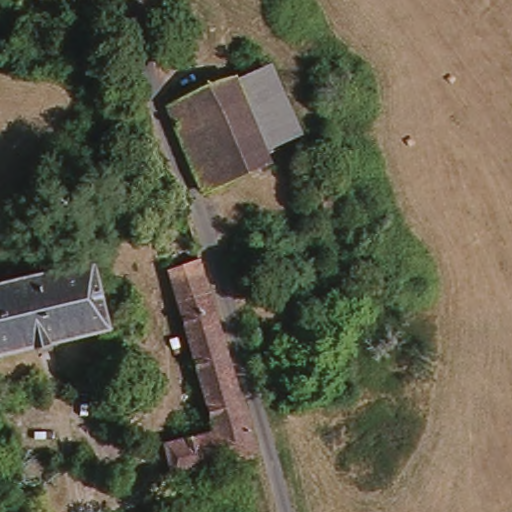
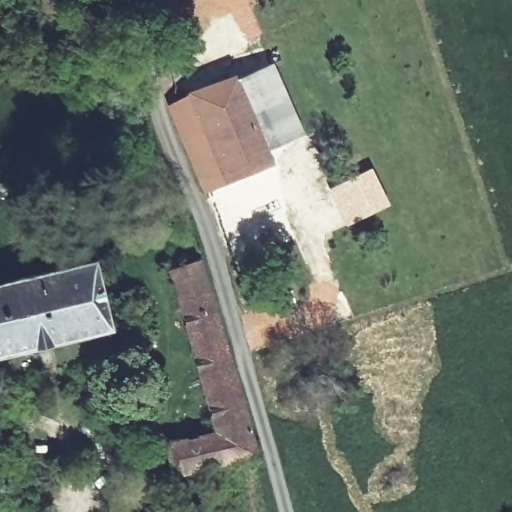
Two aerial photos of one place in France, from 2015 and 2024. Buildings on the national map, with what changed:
new [(182,14),(160,19),(156,0),(179,0),(182,14)]
unchanged [(270,65),(302,135),(269,149),(238,78),(270,65)]
unchanged [(167,107),(167,105),(237,76),(238,78),(269,149),(275,163),(205,193),(167,107)]
new [(372,167),(391,205),(346,226),(327,188),(372,167)]
unchanged [(179,303),(168,265),(198,258),(210,294),(179,303)]
unchanged [(0,353),(0,283),(92,260),(110,327),(0,353)]
unchanged [(176,477),(165,443),(215,430),(179,303),(210,294),(259,454),(257,457),(176,477)]

